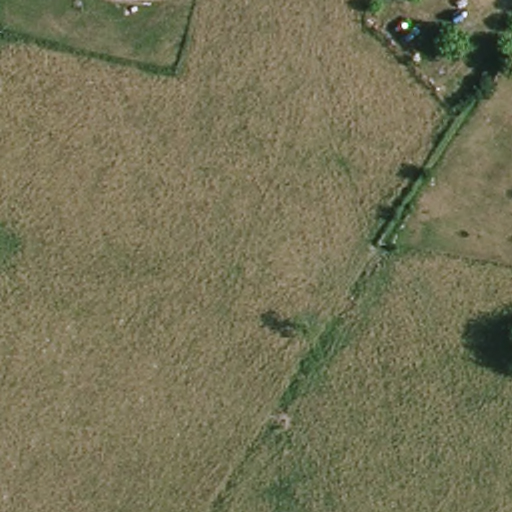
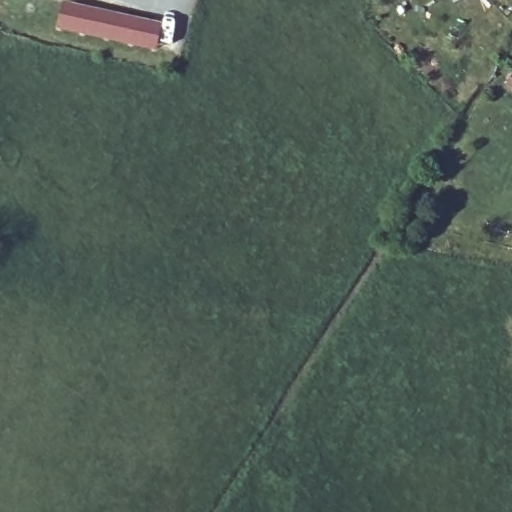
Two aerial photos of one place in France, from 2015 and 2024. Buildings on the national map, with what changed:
new [(64,2),(160,24),(154,49),(58,26),(64,2)]

